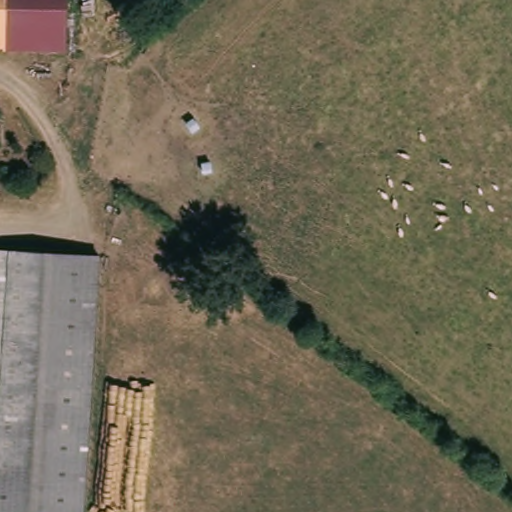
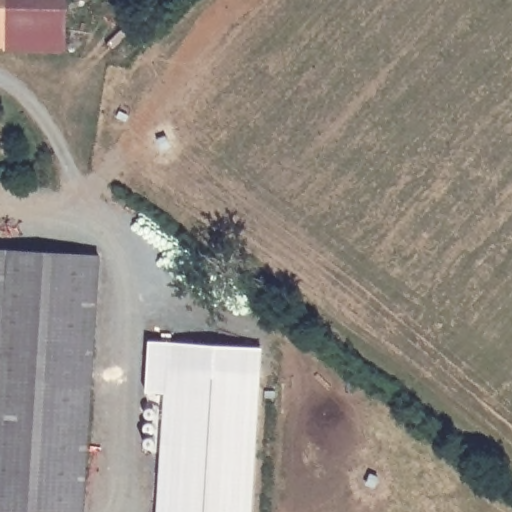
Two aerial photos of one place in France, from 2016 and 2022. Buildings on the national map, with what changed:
unchanged [(5,0),(1,54),(0,54),(0,0),(5,0)]
unchanged [(1,54),(5,0),(66,0),(64,58),(1,54)]
unchanged [(98,257),(82,512),(34,512),(0,510),(0,251),(98,257)]
new [(149,341),(261,347),(251,512),(158,512),(165,393),(146,392),(149,341)]

